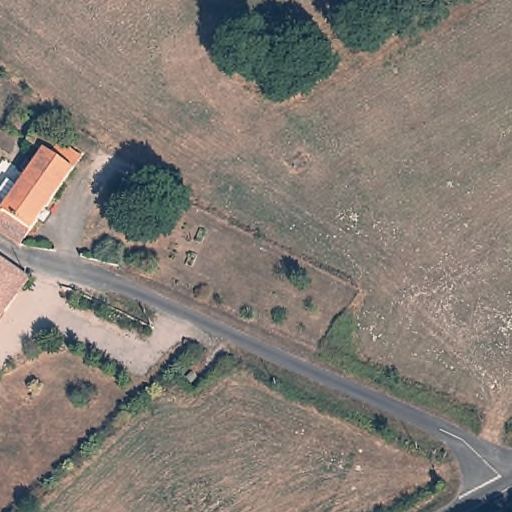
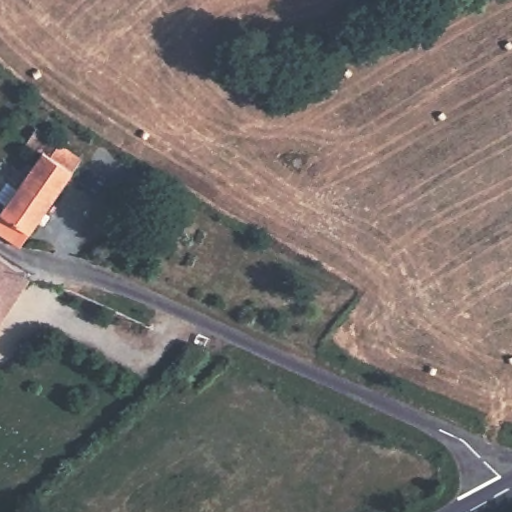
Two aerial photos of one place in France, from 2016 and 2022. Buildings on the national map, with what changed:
unchanged [(0,234),(0,215),(26,177),(25,171),(31,160),(35,163),(42,152),(25,141),(35,126),(83,157),(21,247),(0,234)]
unchanged [(136,203),(140,205),(141,208),(141,212),(140,216),(137,221),(139,223),(120,240),(107,225),(99,216),(119,198),(127,207),(133,203),(136,203)]
unchanged [(30,283),(0,329),(0,261),(30,283)]

